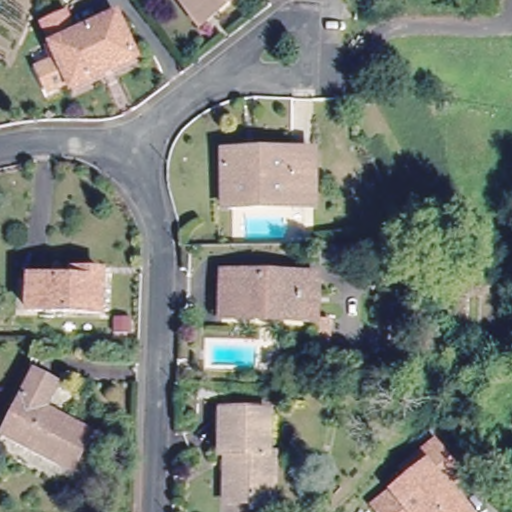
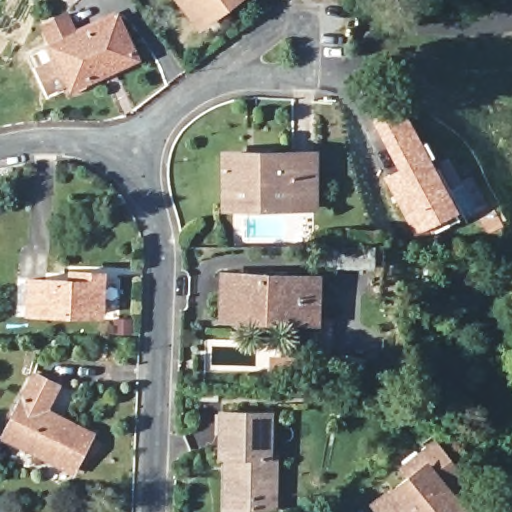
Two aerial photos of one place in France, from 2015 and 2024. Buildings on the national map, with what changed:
unchanged [(180,0),(236,0),(200,27),(180,0)]
unchanged [(48,70),(69,61),(54,27),(79,15),(87,35),(127,17),(147,60),(81,89),(80,85),(60,95),(48,70)]
new [(379,115),(377,112),(399,100),(406,112),(427,147),(460,213),(457,215),(459,219),(432,234),(430,229),(416,236),(383,177),(396,169),(372,119),(379,115)]
unchanged [(315,210),(223,210),(223,154),(315,154),(315,210)]
unchanged [(214,312),(215,266),(308,268),(307,314),(214,312)]
unchanged [(97,312),(24,309),(25,276),(67,277),(67,269),(99,270),(97,312)]
unchanged [(322,313),(321,352),(308,351),(308,313),(322,313)]
unchanged [(3,432),(35,370),(59,382),(46,407),(93,431),(74,468),(3,432)]
unchanged [(225,497),(225,450),(220,450),(220,406),(270,407),(268,448),(273,448),(273,487),(251,486),(251,497),(225,497)]
unchanged [(376,510),(387,501),(412,481),(405,472),(436,447),(463,479),(452,488),(461,499),(472,512),(378,512),(376,510)]

